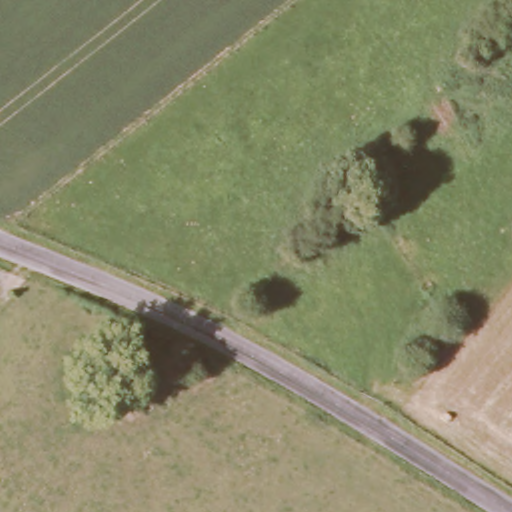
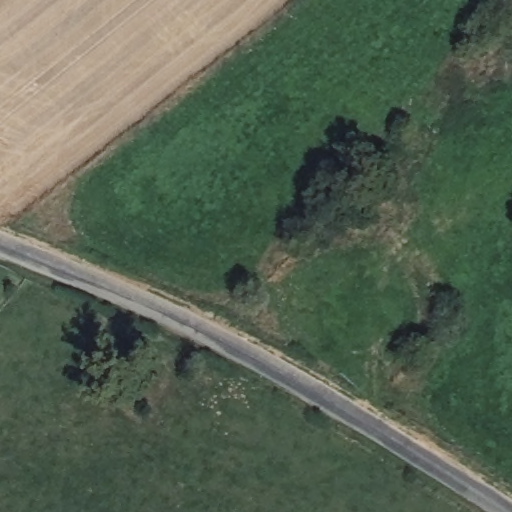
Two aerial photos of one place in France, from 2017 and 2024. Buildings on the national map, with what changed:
unchanged [(512,12),(512,20),(508,16),(512,12)]

